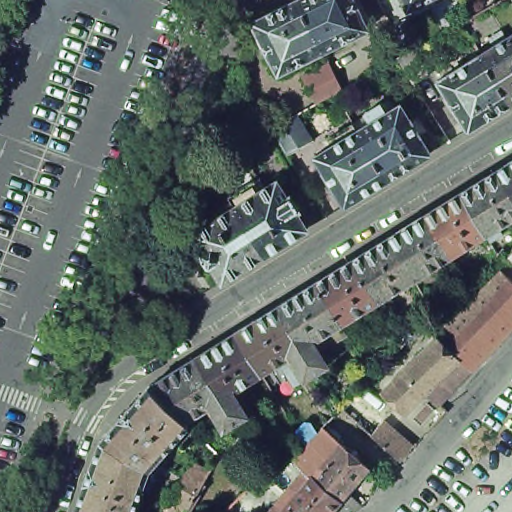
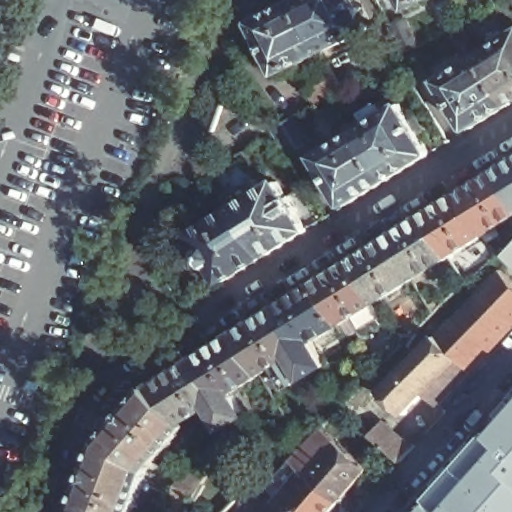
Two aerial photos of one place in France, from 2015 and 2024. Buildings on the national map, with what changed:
unchanged [(304,0),(330,49),(284,72),(258,22),(258,20),(260,19),(297,0),(304,0)]
unchanged [(330,49),(304,0),(361,0),(374,27),(330,49)]
unchanged [(411,0),(427,0),(414,7),(411,0)]
unchanged [(500,0),(501,2),(475,17),(468,2),(472,0),(500,0)]
unchanged [(404,56),(412,52),(398,25),(414,17),(426,44),(425,45),(420,47),(435,72),(419,81),(404,56)]
unchanged [(500,44),(496,37),(508,29),(512,35),(512,94),(486,52),(500,44)]
unchanged [(444,79),(486,52),(512,94),(512,105),(474,128),(444,79)]
unchanged [(336,64),(348,89),(341,92),(325,100),(312,75),(336,64)]
unchanged [(321,155),(340,144),(335,137),(359,122),(364,128),(377,120),(371,111),(386,102),(392,110),(406,102),(436,152),(394,178),(351,205),(321,155)]
unchanged [(319,140),(294,154),(278,127),(302,113),(319,140)]
unchanged [(281,180),(284,180),(294,196),(296,195),(305,209),(302,210),(312,226),(312,229),(271,255),(240,205),(235,196),(236,195),(222,174),(247,159),(260,180),(266,189),(281,180)]
unchanged [(511,234),(500,241),(496,234),(471,192),(507,170),(512,167),(512,224),(507,227),(511,234)]
unchanged [(471,192),(496,234),(460,257),(435,215),(471,192)]
unchanged [(230,280),(227,279),(217,263),(215,264),(206,250),(208,249),(199,233),(200,231),(214,221),(207,212),(232,196),(238,206),(240,205),(271,255),(230,280)]
unchanged [(425,278),(398,237),(435,215),(460,257),(425,278)]
unchanged [(337,364),(325,371),(312,348),(286,307),(326,282),(327,281),(362,260),(398,237),(425,278),(393,298),(398,306),(392,309),(387,302),(352,323),(358,335),(330,352),(337,364)]
unchanged [(512,270),(512,339),(482,371),(447,335),(511,270),(512,270)]
unchanged [(305,386),(290,362),(271,373),(246,332),(286,307),(312,348),(325,371),(314,378),(315,380),(305,386)]
unchanged [(403,327),(408,328),(412,333),(403,343),(396,332),(403,327)]
unchanged [(246,332),(271,373),(242,392),(256,414),(245,421),(231,398),(205,357),(246,332)]
unchanged [(447,335),(482,371),(450,404),(435,392),(415,414),(391,392),(447,335)]
unchanged [(205,357),(231,398),(245,421),(233,428),(220,406),(195,421),(159,386),(205,357)]
unchanged [(159,386),(195,421),(198,425),(160,468),(111,440),(159,386)]
new [(427,508),(411,496),(500,396),(510,405),(512,403),(512,512),(423,512),(427,508)]
unchanged [(383,421),(414,447),(400,462),(370,436),(383,421)]
unchanged [(316,446),(306,431),(315,422),(320,422),(328,433),(333,427),(351,443),(328,470),(323,466),(322,467),(316,473),(302,461),(316,446)]
unchanged [(111,440),(160,468),(143,512),(91,512),(85,510),(111,440)]
unchanged [(366,512),(365,512),(351,500),(350,502),(321,477),(321,478),(316,473),(322,467),(323,466),(328,470),(351,443),(380,467),(380,468),(358,493),(371,505),(366,512)]
unchanged [(176,509),(190,486),(203,462),(220,472),(221,472),(214,483),(233,495),(226,507),(233,512),(182,512),(176,509)]
unchanged [(258,486),(260,485),(258,483),(274,467),(283,481),(268,496),(272,500),(260,512),(233,512),(258,486)]
unchanged [(295,509),(287,503),(305,483),(311,489),(321,478),(321,477),(350,502),(341,512),(292,512),(295,509)]
unchanged [(85,510),(91,512),(85,512),(85,510)]

